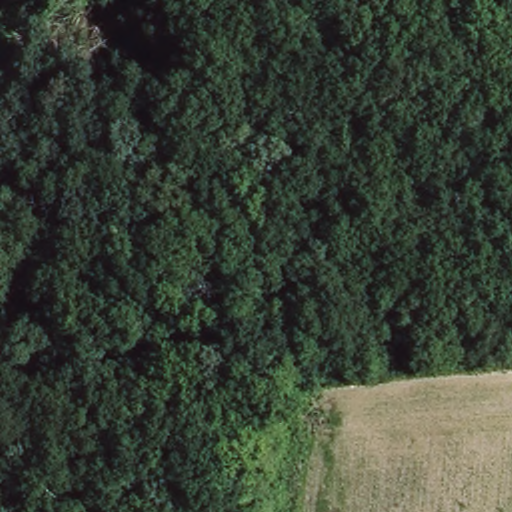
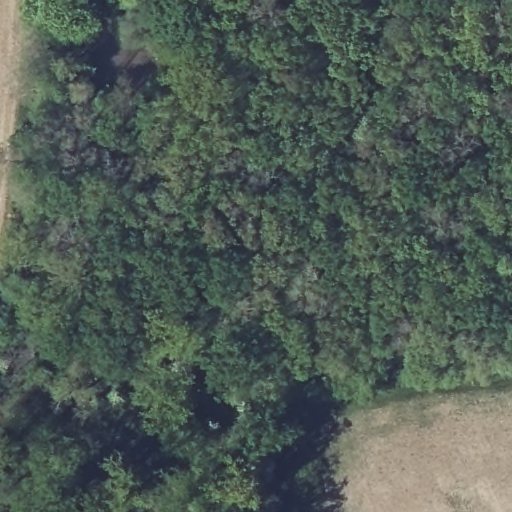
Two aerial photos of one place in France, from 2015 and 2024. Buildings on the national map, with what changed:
[]

